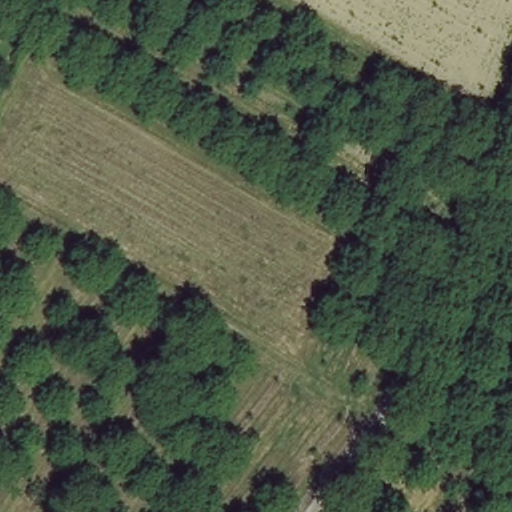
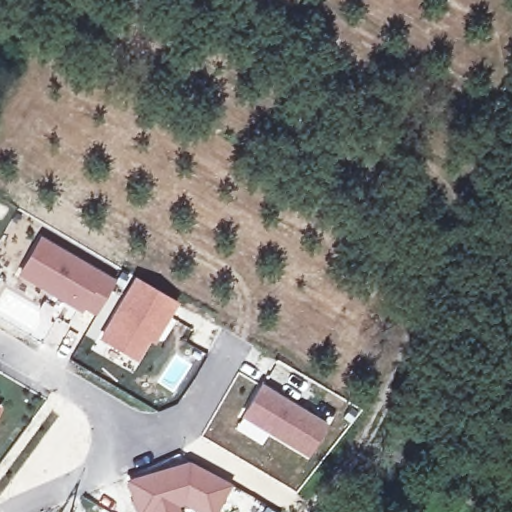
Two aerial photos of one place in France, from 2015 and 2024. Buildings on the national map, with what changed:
new [(115,278),(96,314),(83,307),(81,311),(17,274),(40,234),(115,278)]
new [(176,302),(154,342),(148,340),(137,361),(100,338),(134,276),(176,302)]
new [(260,382),(328,424),(310,455),(243,414),(260,382)]
new [(0,413),(0,405),(4,407),(0,413)]
new [(232,484),(216,512),(200,512),(185,504),(178,507),(180,512),(137,512),(127,479),(187,460),(232,484)]
new [(111,512),(99,512),(102,507),(111,512)]

